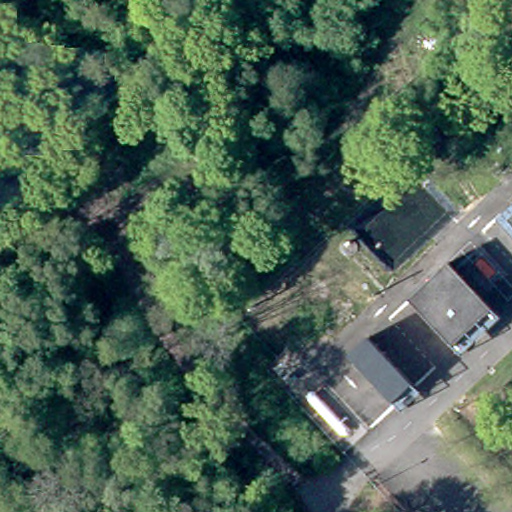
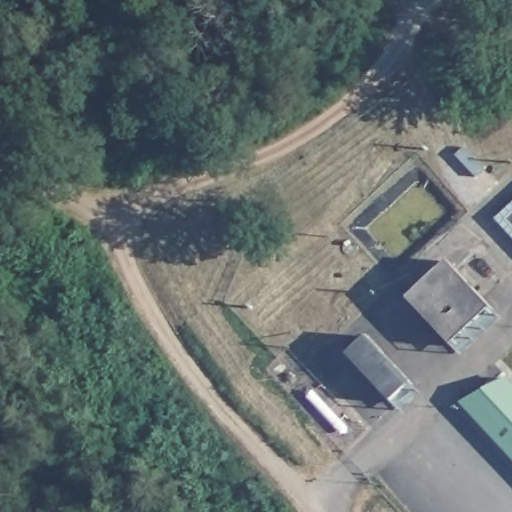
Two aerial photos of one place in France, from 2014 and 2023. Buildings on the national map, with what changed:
unchanged [(512,199),(512,243),(490,219),(512,199)]
unchanged [(447,260),(492,310),(449,350),(402,300),(447,260)]
unchanged [(365,335),(410,387),(389,402),(345,356),(365,335)]
new [(512,381),(512,461),(460,403),(509,377),(512,381)]

